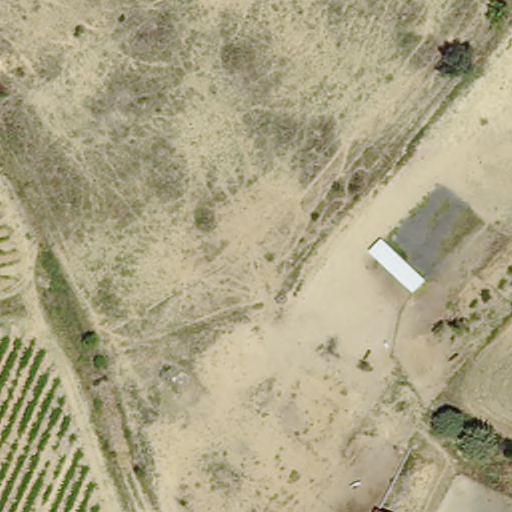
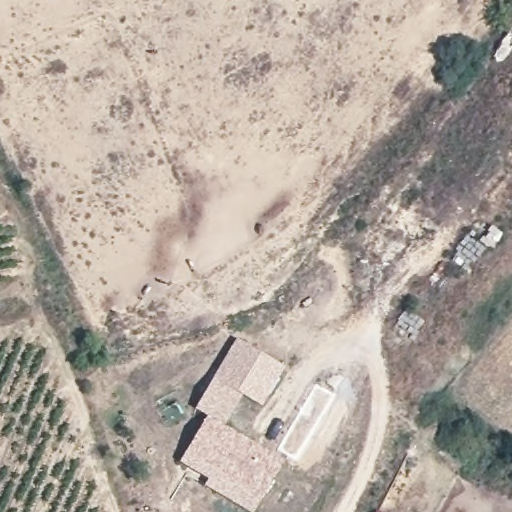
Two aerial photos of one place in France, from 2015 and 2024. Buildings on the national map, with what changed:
new [(194,409),(236,338),(284,366),(262,406),(243,395),(225,424),(207,414),(194,409)]
new [(208,477),(180,462),(207,414),(283,459),(253,512),(252,512),(204,485),(208,477)]
unchanged [(375,512),(376,510),(380,512),(375,512)]

